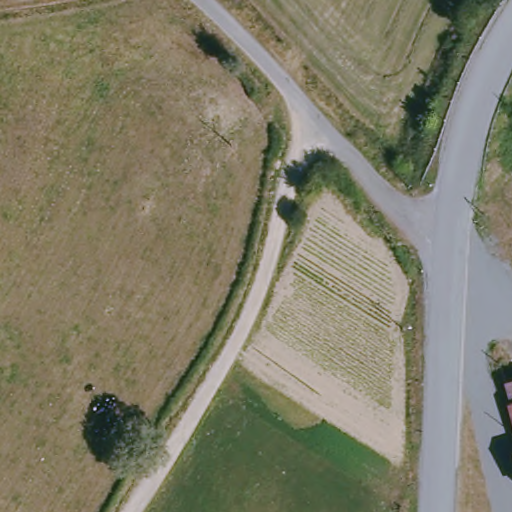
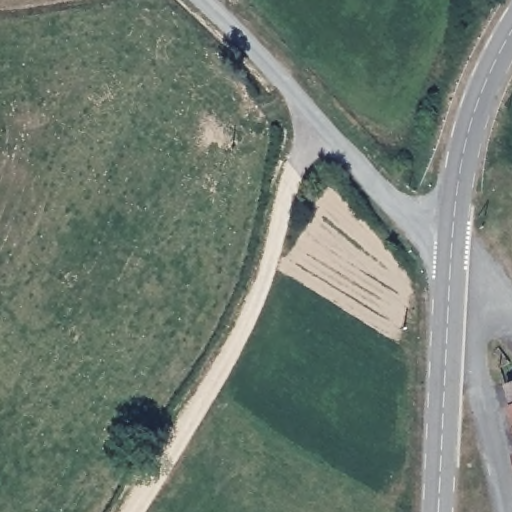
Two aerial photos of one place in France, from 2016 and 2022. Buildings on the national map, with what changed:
unchanged [(507,401),(510,400),(505,381),(512,379),(512,426),(507,401)]

